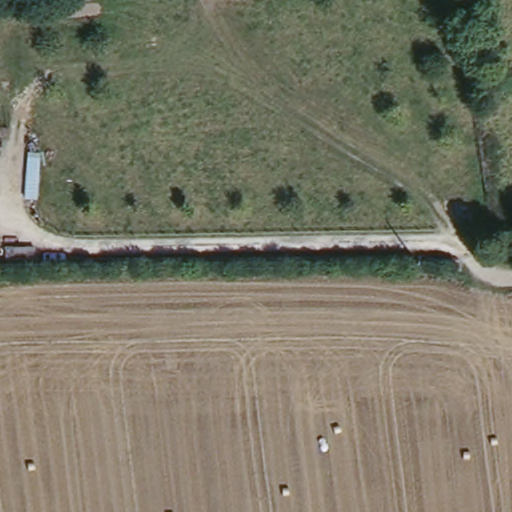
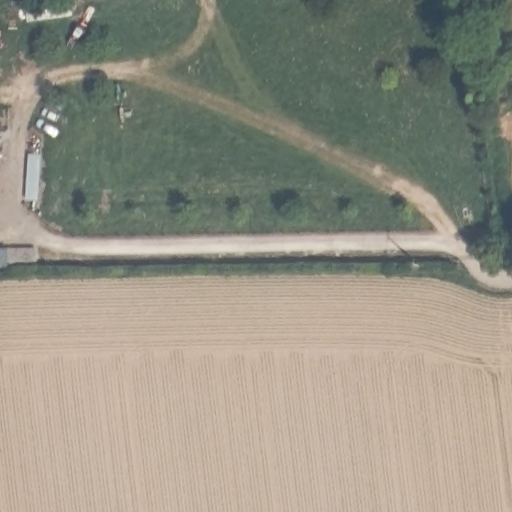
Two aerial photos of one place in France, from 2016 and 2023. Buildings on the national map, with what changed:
unchanged [(512,66),(512,91),(502,91),(502,66),(512,66)]

